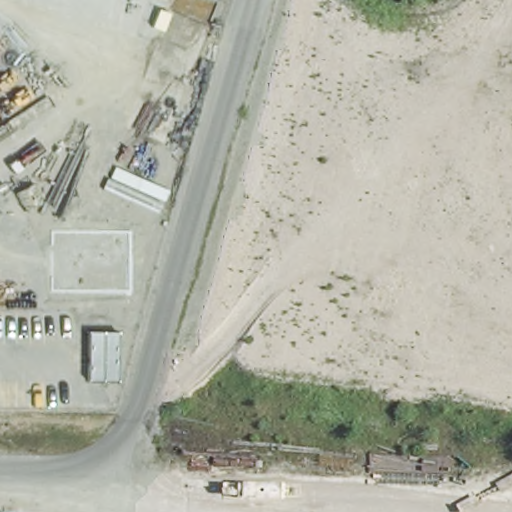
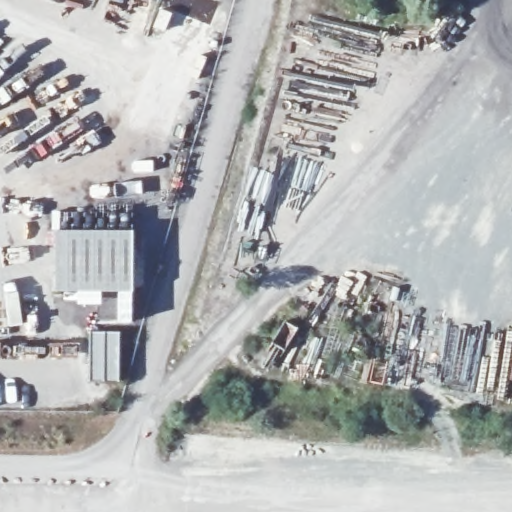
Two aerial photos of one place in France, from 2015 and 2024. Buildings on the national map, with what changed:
new [(132,231),(133,291),(131,291),(131,323),(118,323),(118,292),(98,292),(100,305),(77,305),(74,292),(53,292),(53,230),(132,231)]
unchanged [(120,383),(88,384),(86,332),(119,332),(120,383)]

